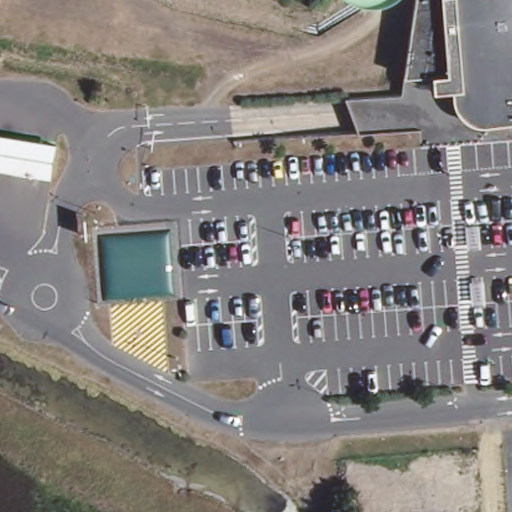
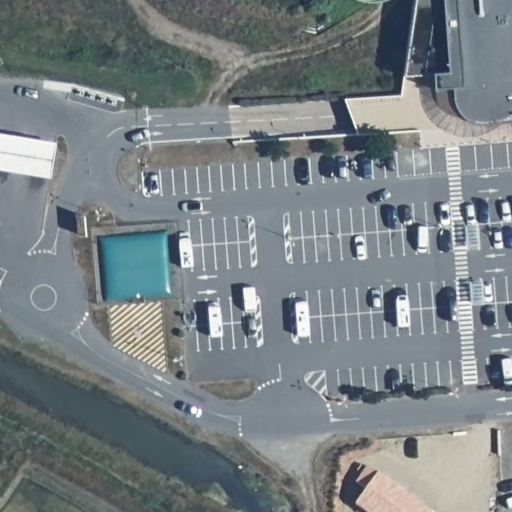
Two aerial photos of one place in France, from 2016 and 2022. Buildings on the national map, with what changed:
unchanged [(512,122),(474,125),(471,126),(469,125),(466,125),(464,124),(462,124),(461,124),(459,123),(458,122),(457,122),(456,121),(455,120),(454,120),(453,119),(451,118),(450,116),(449,116),(448,115),(448,114),(447,113),(447,112),(446,111),(445,110),(444,109),(444,108),(443,107),(443,106),(443,105),(442,104),(442,102),(442,101),(441,100),(441,98),(441,97),(441,96),(441,95),(440,88),(439,73),(392,77),(407,0),(512,0),(512,122)]
unchanged [(54,144),(48,181),(0,174),(0,135),(54,144)]
new [(435,512),(368,512),(357,503),(369,490),(358,481),(369,466),(380,472),(435,512)]

